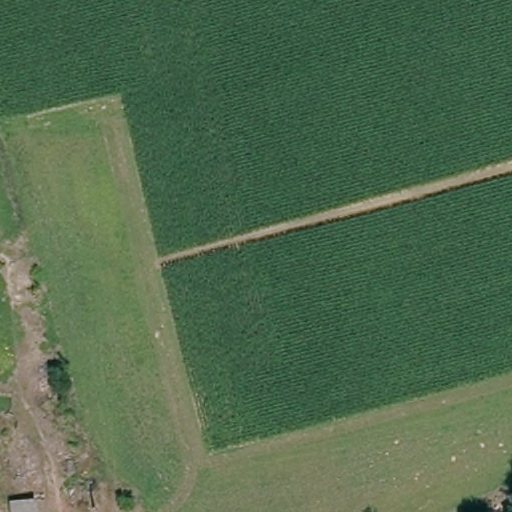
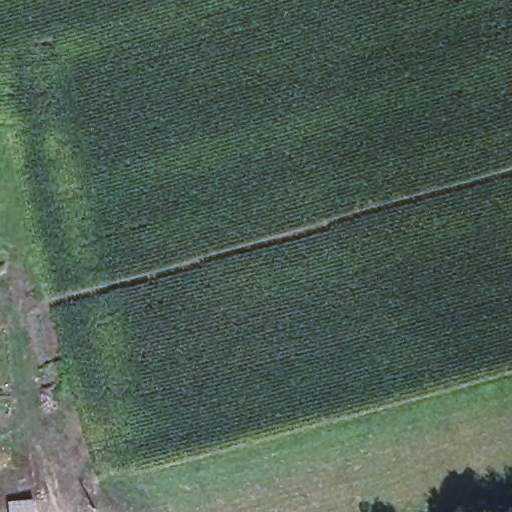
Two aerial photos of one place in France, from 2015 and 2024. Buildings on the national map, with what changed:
unchanged [(34,502),(34,512),(9,512),(9,503),(34,502)]

